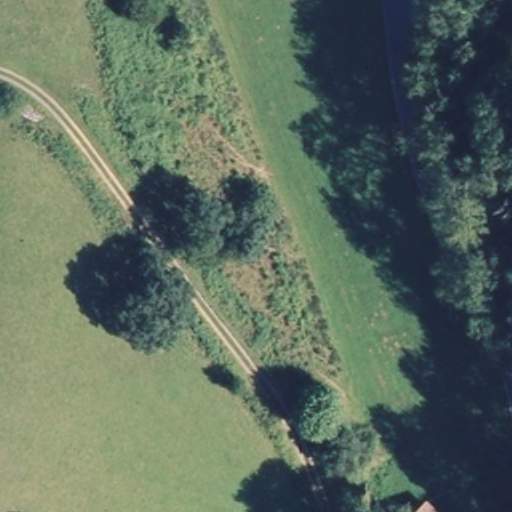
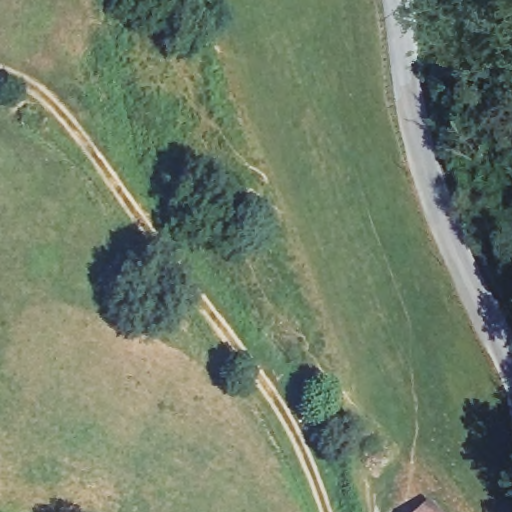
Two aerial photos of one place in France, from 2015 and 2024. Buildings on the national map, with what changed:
unchanged [(433,512),(427,512),(430,509),(433,512)]

